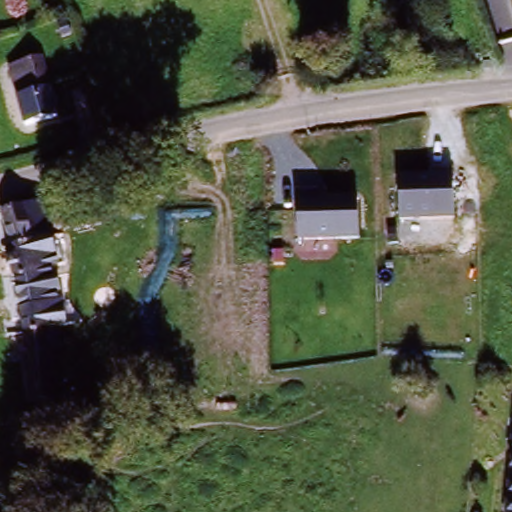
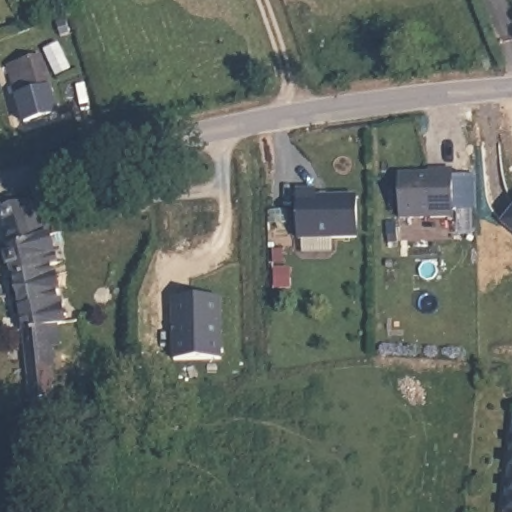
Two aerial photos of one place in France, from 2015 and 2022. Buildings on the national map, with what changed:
unchanged [(15,92),(31,86),(26,69),(42,63),(47,81),(55,106),(21,116),(15,92)]
unchanged [(399,173),(452,174),(451,218),(398,217),(399,173)]
unchanged [(294,194),(356,192),(358,239),(295,241),(294,194)]
unchanged [(0,220),(0,210),(40,198),(62,261),(52,264),(67,328),(50,332),(60,375),(25,389),(0,220)]
new [(225,303),(225,365),(179,366),(178,303),(225,303)]
unchanged [(102,398),(110,416),(66,432),(60,413),(102,398)]
unchanged [(512,512),(506,512),(512,440),(512,512)]
unchanged [(10,512),(12,485),(30,486),(27,512),(10,512)]

